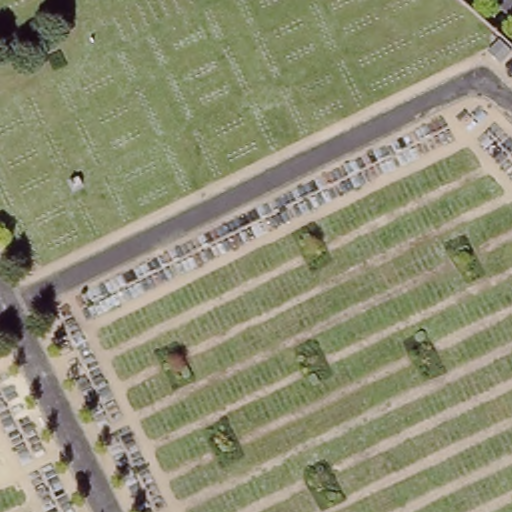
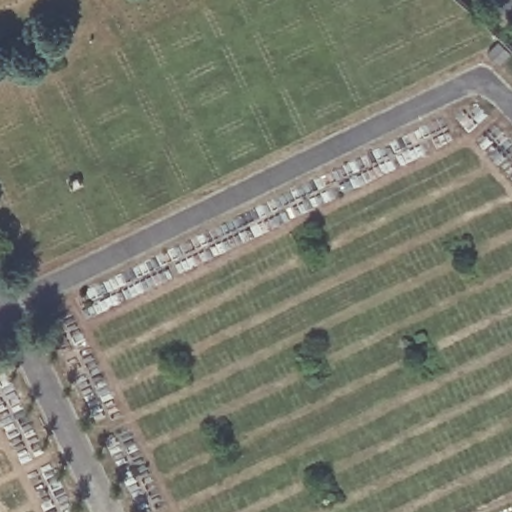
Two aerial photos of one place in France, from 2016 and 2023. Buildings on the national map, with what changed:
unchanged [(496,40),(512,53),(499,66),(485,53),(496,40)]

